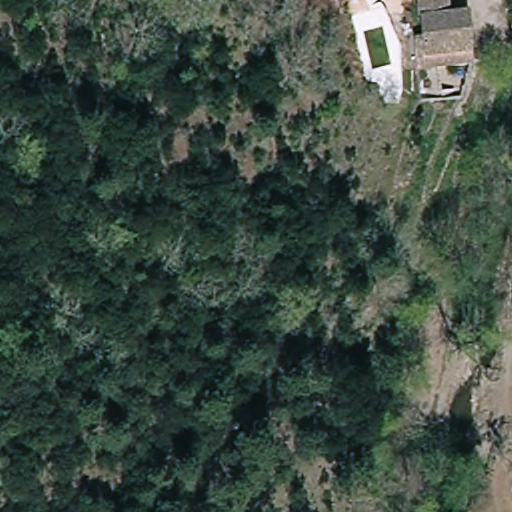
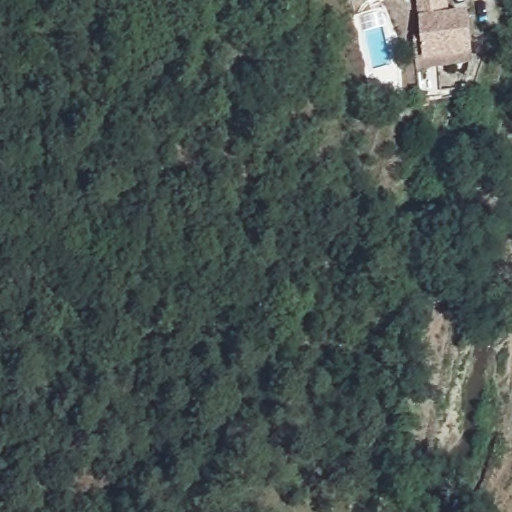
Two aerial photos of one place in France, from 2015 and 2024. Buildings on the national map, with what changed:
unchanged [(421,71),(416,35),(426,34),(422,0),(450,0),(451,15),(472,13),(479,65),(421,71)]

